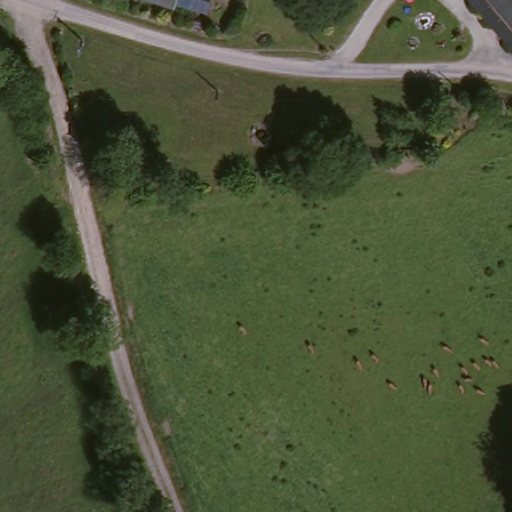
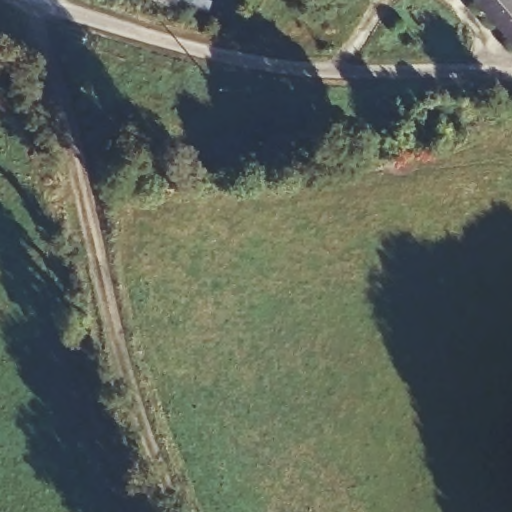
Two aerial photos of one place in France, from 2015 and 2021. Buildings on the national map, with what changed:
unchanged [(149,0),(177,0),(174,9),(149,0)]
unchanged [(183,7),(186,0),(203,0),(205,0),(200,13),(183,7)]
unchanged [(470,0),(512,0),(512,47),(510,46),(470,0)]

